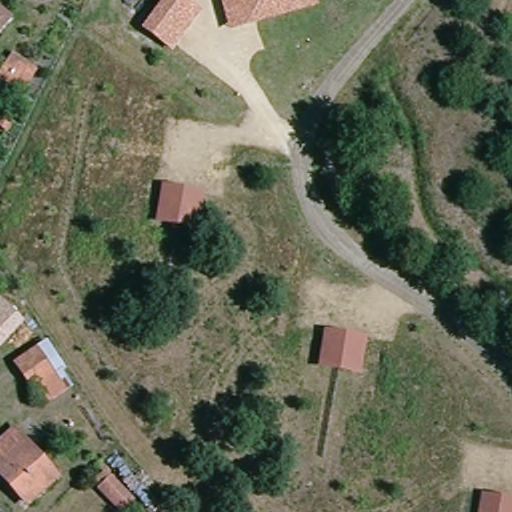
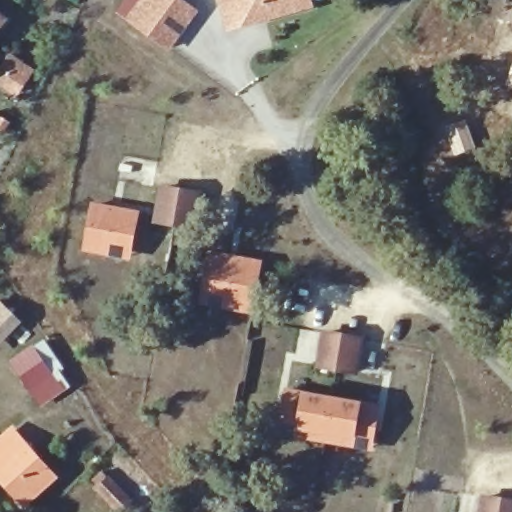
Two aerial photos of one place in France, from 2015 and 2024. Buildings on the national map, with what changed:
unchanged [(140,28),(161,0),(187,0),(201,10),(172,51),(140,28)]
unchanged [(228,29),(220,0),(315,0),(317,7),(228,29)]
unchanged [(0,25),(0,15),(5,19),(0,25)]
unchanged [(20,99),(0,85),(0,64),(10,50),(39,71),(20,99)]
new [(512,67),(512,88),(506,86),(512,67)]
new [(467,122),(476,147),(454,156),(445,131),(467,122)]
unchanged [(203,191),(197,229),(153,221),(158,184),(203,191)]
new [(85,250),(93,202),(140,211),(133,260),(85,250)]
new [(200,304),(210,250),(264,260),(254,313),(200,304)]
unchanged [(1,337),(0,338),(0,300),(19,321),(1,337)]
unchanged [(367,335),(360,376),(315,367),(322,328),(367,335)]
unchanged [(73,381),(61,388),(55,393),(40,402),(12,361),(20,356),(38,345),(53,371),(64,365),(73,381)]
new [(278,436),(286,388),(304,390),(364,401),(381,402),(375,451),(278,436)]
unchanged [(56,476),(22,503),(0,478),(0,437),(11,427),(56,476)]
unchanged [(135,501),(124,512),(114,512),(86,486),(103,468),(135,501)]
unchanged [(512,497),(512,512),(477,512),(481,492),(512,497)]

